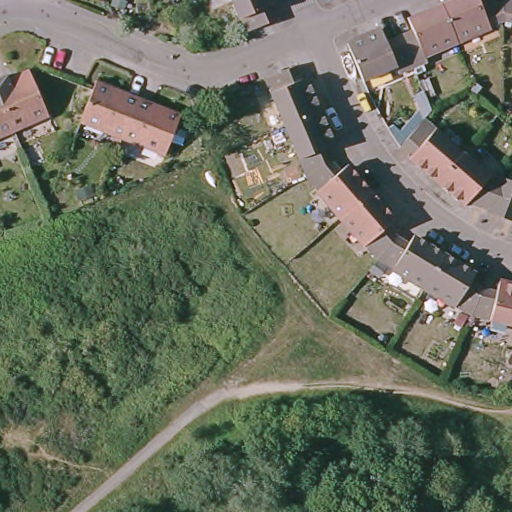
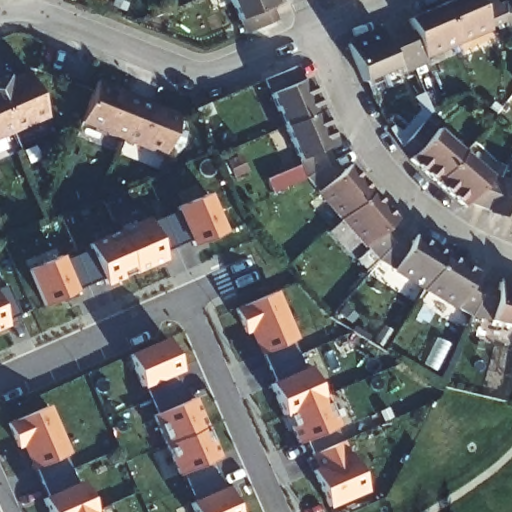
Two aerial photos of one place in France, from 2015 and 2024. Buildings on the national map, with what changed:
unchanged [(240,28),(228,0),(266,0),(265,0),(271,14),(264,16),(240,28)]
unchanged [(358,75),(342,39),(376,24),(381,36),(407,24),(402,11),(430,0),(512,0),(512,18),(499,15),(419,50),(422,56),(394,69),(391,62),(358,75)]
unchanged [(466,273),(465,275),(477,283),(481,285),(492,286),(494,276),(506,279),(512,281),(512,323),(466,312),(419,283),(371,254),(336,213),(301,172),(279,121),(259,74),(291,60),(298,75),(302,72),(330,137),(321,141),(324,147),(324,150),(327,156),(336,165),(338,163),(344,159),(348,164),(386,208),(391,214),(386,217),(384,220),(384,221),(392,230),(404,237),(405,235),(409,229),(416,233),(440,248),(464,263),(470,267),(467,272),(466,273)]
unchanged [(8,75),(8,79),(29,70),(48,115),(0,135),(0,78),(8,75)]
unchanged [(151,100),(181,111),(165,154),(136,142),(135,144),(108,132),(108,131),(81,120),(94,85),(96,80),(126,91),(123,98),(149,108),(151,100)]
unchanged [(503,217),(463,202),(460,205),(460,206),(404,157),(405,156),(407,154),(396,144),(419,118),(458,151),(484,175),(496,180),(509,185),(512,185),(512,220),(511,220),(503,217)]
new [(178,210),(176,206),(207,192),(224,231),(193,245),(191,239),(162,252),(164,257),(105,282),(103,277),(74,290),(77,295),(60,302),(58,298),(43,305),(28,268),(59,254),(62,260),(90,248),(88,242),(148,217),(149,221),(178,210)]
new [(7,284),(20,313),(5,320),(6,322),(0,325),(0,287),(7,284)]
new [(252,328),(245,330),(235,307),(274,290),(296,338),(292,340),(304,368),(308,366),(321,396),(324,395),(338,425),(335,426),(347,455),(351,453),(366,489),(328,505),(313,469),(318,467),(306,439),(298,442),(285,412),(283,413),(269,383),(274,381),(252,328)]
new [(145,383),(141,385),(128,355),(166,337),(179,368),(174,370),(187,399),(192,396),(218,455),(213,458),(225,486),(231,485),(238,500),(233,502),(237,512),(194,512),(189,502),(195,500),(183,471),(178,473),(153,414),(158,411),(145,383)]
new [(24,442),(17,445),(8,422),(47,405),(68,452),(64,454),(76,482),(80,480),(93,510),(96,508),(98,512),(49,512),(42,497),(46,495),(24,442)]

